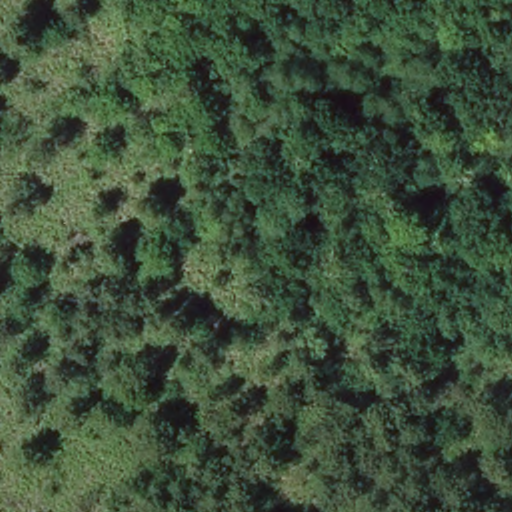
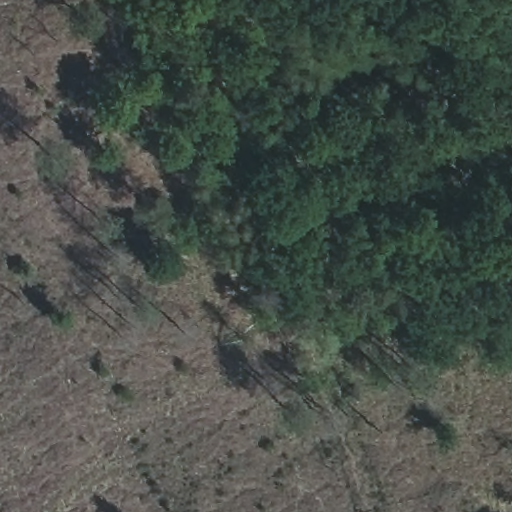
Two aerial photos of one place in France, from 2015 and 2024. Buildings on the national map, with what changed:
unchanged [(392,26),(361,36),(350,2),(357,0),(383,0),(392,26)]

